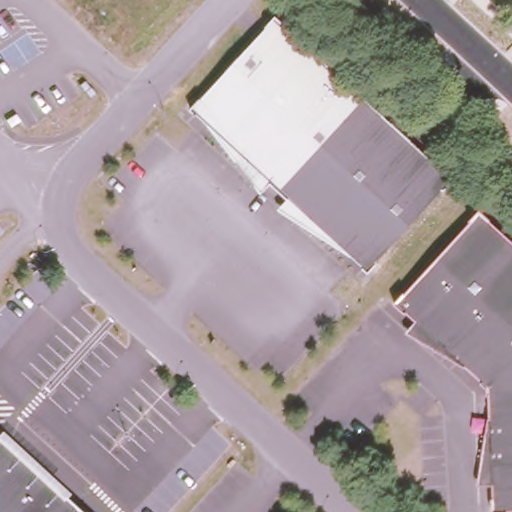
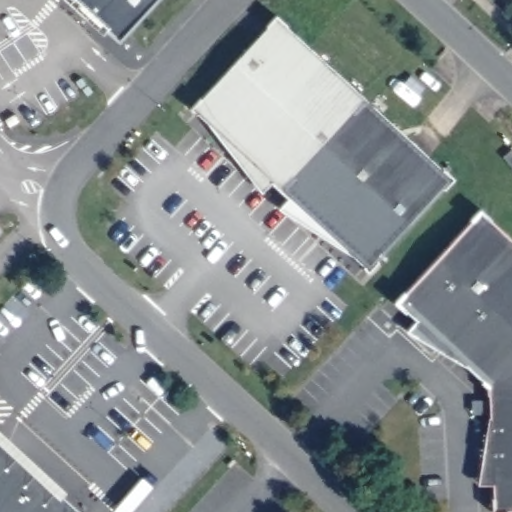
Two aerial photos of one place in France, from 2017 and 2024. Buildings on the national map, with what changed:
new [(117,38),(75,0),(151,0),(117,38)]
unchanged [(282,197),(265,180),(255,192),(207,127),(185,107),(270,13),(448,177),(362,270),(341,250),(273,207),(282,197)]
unchanged [(485,388),(462,367),(402,331),(413,319),(395,301),(480,209),(512,239),(512,512),(492,512),(490,487),(475,489),(486,417),(485,388)]
unchanged [(0,512),(0,439),(81,512),(0,512)]

